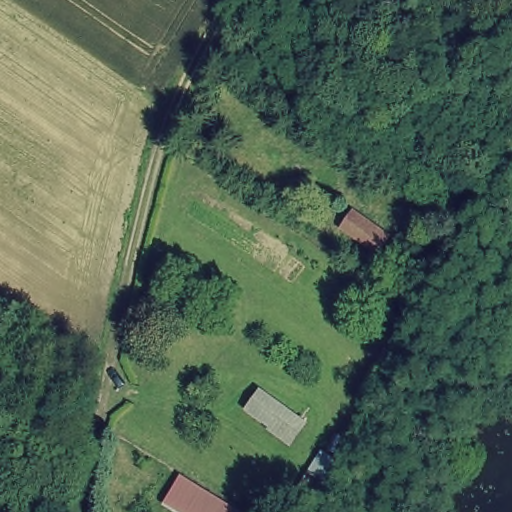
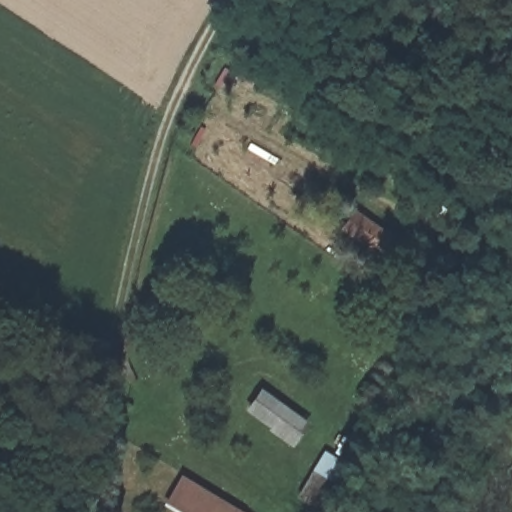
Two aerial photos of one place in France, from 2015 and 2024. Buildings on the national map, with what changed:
unchanged [(393,233),(380,253),(342,228),(357,208),(393,233)]
unchanged [(311,419),(299,442),(250,411),(263,388),(311,419)]
unchanged [(248,512),(180,512),(164,503),(183,472),(248,512)]

